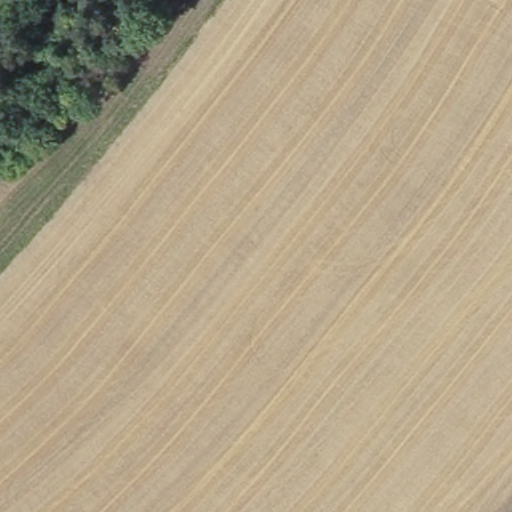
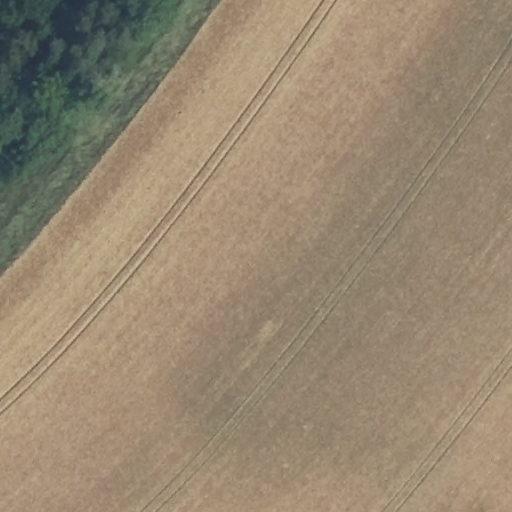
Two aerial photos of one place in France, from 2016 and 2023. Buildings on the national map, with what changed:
[]

